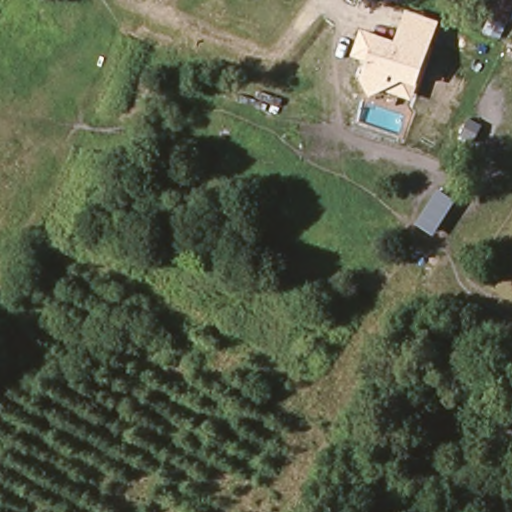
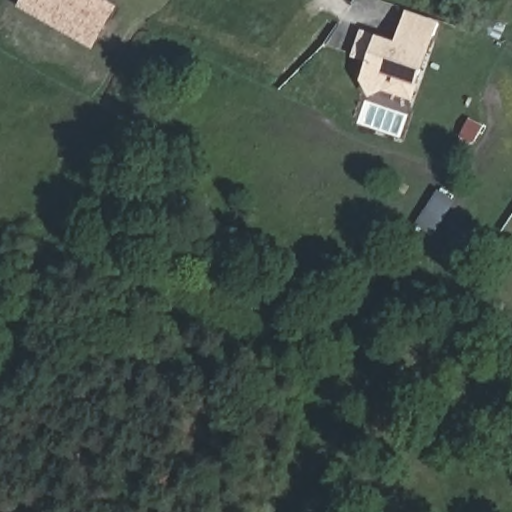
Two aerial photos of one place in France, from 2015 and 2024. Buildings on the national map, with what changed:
new [(21,0),(109,0),(118,5),(93,50),(18,7),(21,0)]
demolished [(91,9),(77,37),(40,20),(50,0),(75,0),(91,9)]
unchanged [(439,22),(418,86),(412,101),(385,91),(370,97),(361,79),(366,61),(352,57),(361,30),(377,35),(396,41),(406,12),(439,22)]
new [(440,192),(452,200),(430,231),(418,224),(440,192)]

